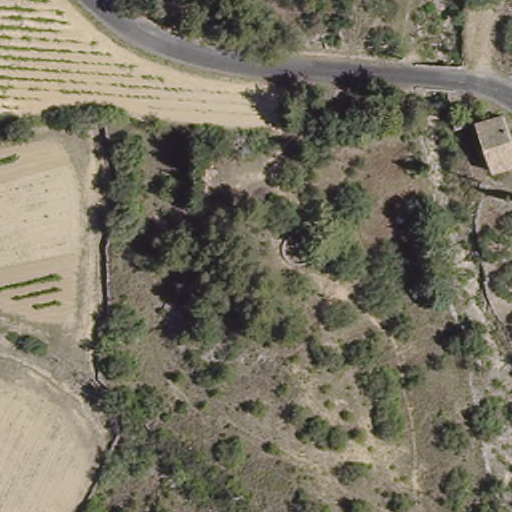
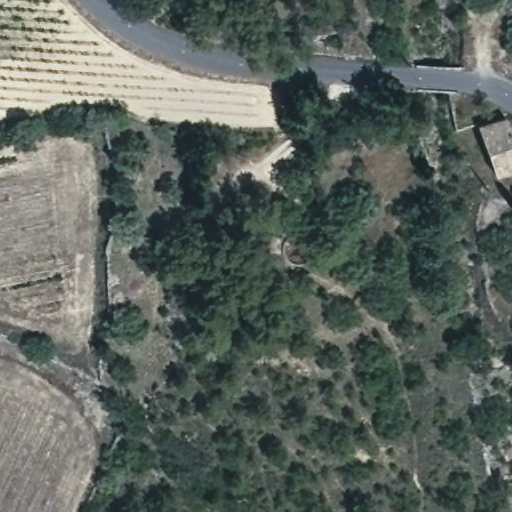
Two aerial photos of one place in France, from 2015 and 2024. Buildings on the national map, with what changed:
unchanged [(503,121),(512,146),(512,171),(491,178),(475,131),(503,121)]

